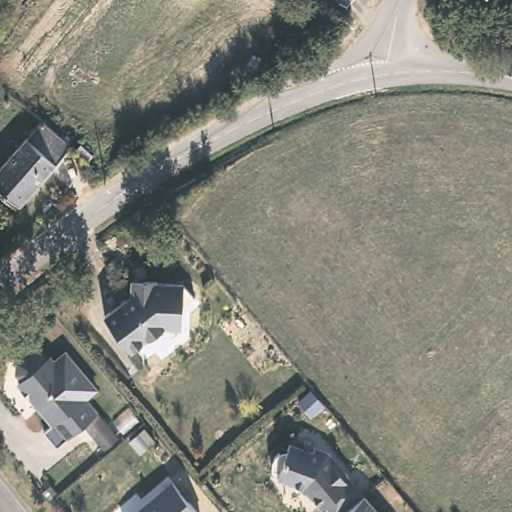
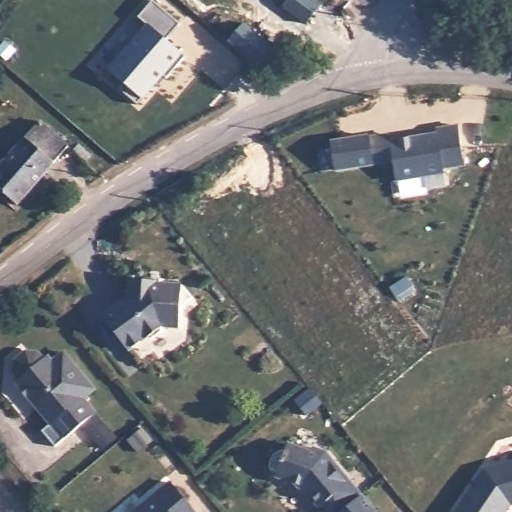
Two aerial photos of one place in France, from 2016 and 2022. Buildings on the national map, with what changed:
new [(138,104),(120,89),(126,80),(109,67),(147,24),(139,17),(155,0),(156,0),(180,24),(165,40),(184,57),(143,98),(138,104)]
unchanged [(0,187),(0,168),(35,127),(42,120),(71,145),(70,147),(18,204),(0,187)]
new [(438,134),(437,129),(460,126),(466,166),(445,169),(447,186),(427,189),(425,177),(397,181),(391,142),(438,134)]
new [(390,131),(391,142),(395,161),(375,164),(337,171),(332,142),(370,136),(390,131)]
unchanged [(152,277),(155,281),(180,282),(190,295),(178,303),(178,322),(176,323),(162,322),(161,328),(150,337),(142,336),(127,347),(102,313),(137,287),(137,282),(142,277),(152,277)]
unchanged [(15,389),(18,386),(13,380),(12,370),(26,357),(36,360),(46,372),(62,358),(92,396),(82,405),(94,419),(52,452),(40,437),(49,430),(30,408),(15,389)]
unchanged [(323,406),(312,416),(299,402),(310,392),(323,406)]
unchanged [(332,448),(368,492),(364,495),(343,512),(340,512),(330,500),(327,503),(317,491),(305,487),(299,478),(283,472),(285,468),(279,466),(278,467),(277,467),(277,463),(277,461),(277,460),(277,456),(280,453),(280,452),(281,451),(285,448),(285,449),(285,450),(290,452),(295,440),(317,448),(319,443),(332,448)]
new [(485,467),(512,459),(512,504),(506,512),(459,512),(456,510),(485,467)]
unchanged [(172,483),(197,512),(138,512),(172,483)]
unchanged [(364,495),(376,512),(344,512),(364,495)]

